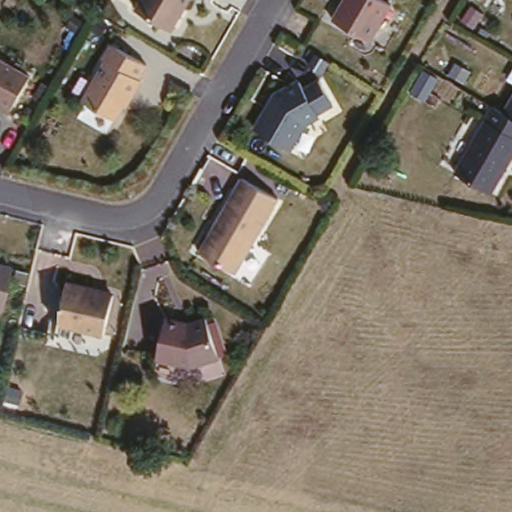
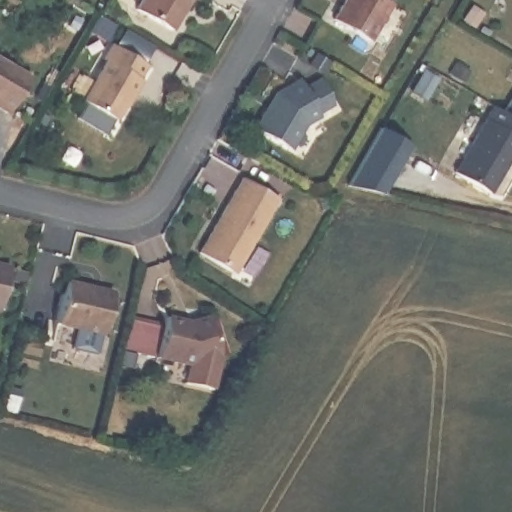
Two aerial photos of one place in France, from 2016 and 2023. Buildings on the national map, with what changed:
unchanged [(189,0),(173,29),(138,8),(142,0),(189,0)]
unchanged [(339,0),(373,0),(387,8),(366,45),(328,24),(341,1),(339,0)]
unchanged [(148,69),(139,83),(141,84),(131,101),(129,100),(116,124),(84,105),(107,65),(104,63),(112,48),(148,69)]
unchanged [(13,111),(0,103),(0,53),(35,74),(13,111)]
unchanged [(271,94),(295,80),(300,88),(315,79),(328,103),(313,111),(315,114),(300,122),(285,148),(251,128),(271,94)]
unchanged [(486,187),(449,164),(488,101),(501,109),(512,92),(512,148),(486,187)]
new [(412,146),(384,194),(349,185),(380,128),(412,146)]
unchanged [(200,254),(242,177),(277,197),(236,273),(200,254)]
unchanged [(0,264),(11,267),(0,316),(0,264)]
unchanged [(68,281),(93,287),(92,290),(114,295),(104,335),(58,323),(68,281)]
unchanged [(162,322),(185,327),(202,321),(215,361),(186,370),(150,361),(162,322)]

